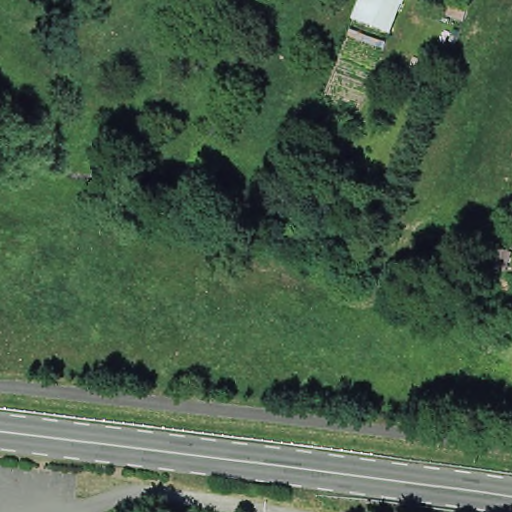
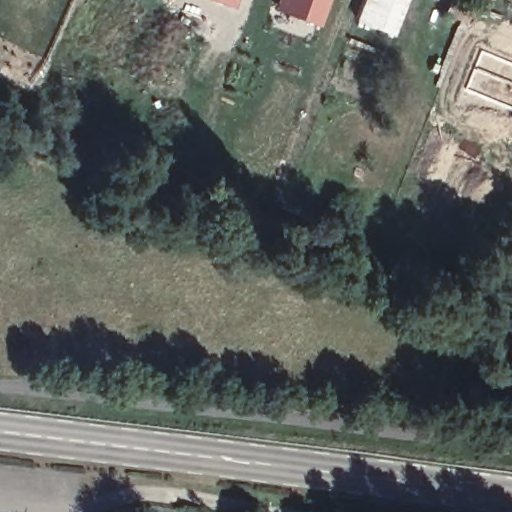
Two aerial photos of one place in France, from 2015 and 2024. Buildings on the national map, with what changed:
new [(213,0),(234,0),(232,7),(213,0)]
new [(324,0),(314,24),(273,7),(275,0),(324,0)]
unchanged [(399,0),(389,25),(359,14),(364,0),(399,0)]
unchanged [(449,15),(454,0),(472,8),(466,22),(449,15)]

